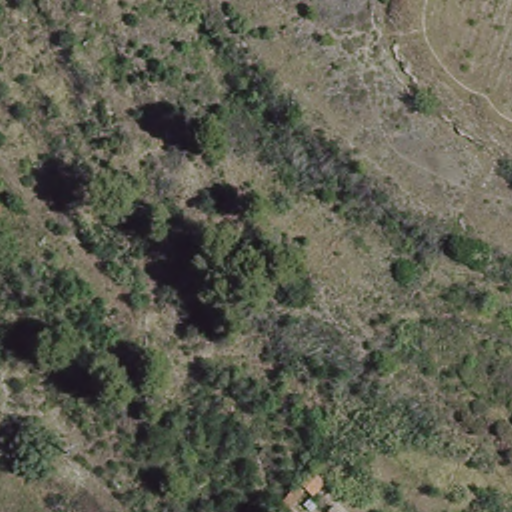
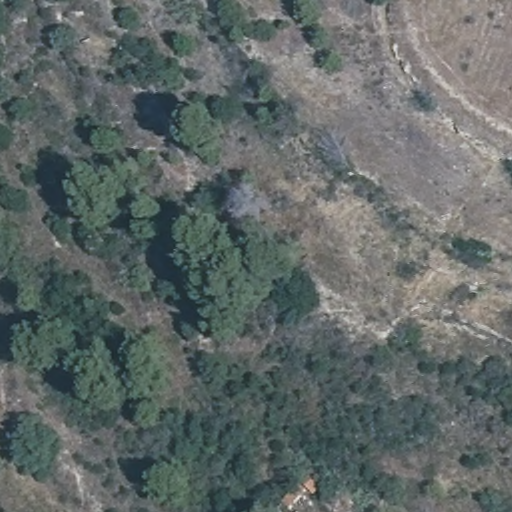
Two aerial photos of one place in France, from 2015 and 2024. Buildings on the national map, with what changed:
unchanged [(302,481),(310,488),(295,508),(299,512),(278,512),(287,501),(302,481)]

